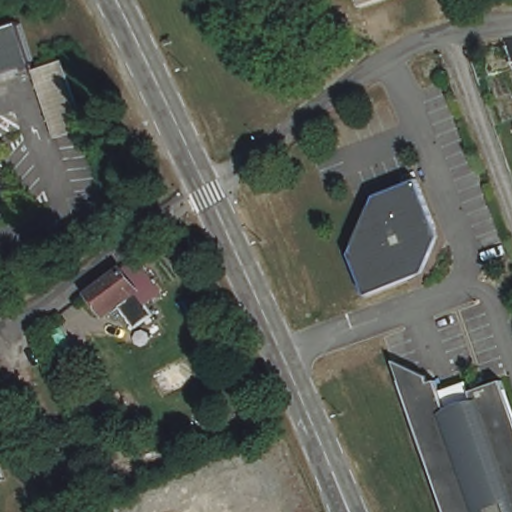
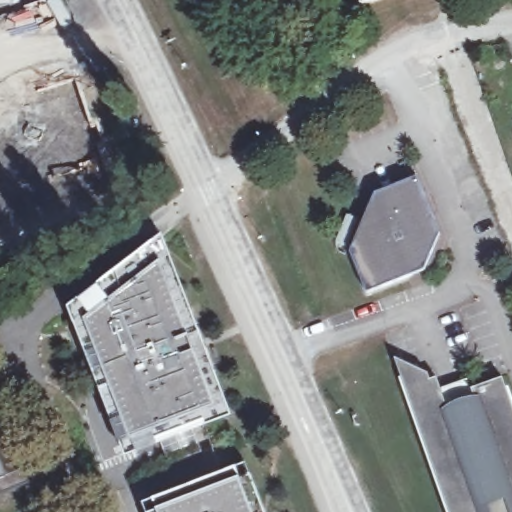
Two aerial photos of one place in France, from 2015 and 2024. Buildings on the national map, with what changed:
unchanged [(361,0),(373,0),(363,4),(361,0)]
unchanged [(22,20),(35,61),(0,72),(0,27),(22,20)]
unchanged [(61,135),(47,93),(38,66),(65,57),(89,125),(61,135)]
unchanged [(445,235),(430,272),(372,294),(356,254),(380,195),(422,177),(445,235)]
new [(69,310),(163,236),(233,418),(209,427),(207,423),(151,444),(153,450),(127,458),(69,310)]
demolished [(121,330),(107,308),(94,317),(80,298),(114,273),(115,274),(126,266),(150,299),(136,310),(140,316),(121,330)]
unchanged [(430,387),(437,385),(448,417),(475,407),(471,396),(503,385),(512,412),(512,512),(447,512),(395,365),(428,381),(430,387)]
unchanged [(11,481),(0,485),(0,452),(11,481)]
new [(248,465),(266,512),(146,512),(143,506),(248,465)]

